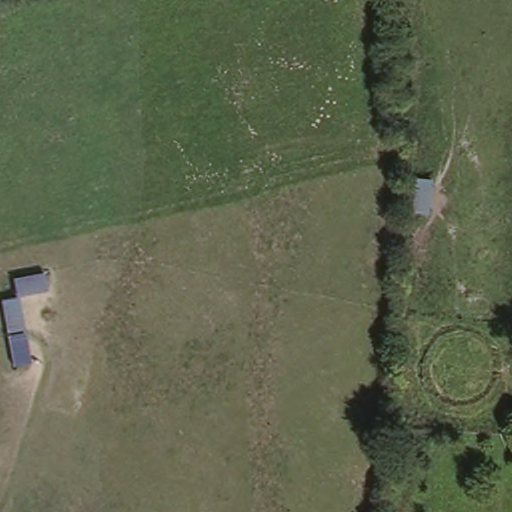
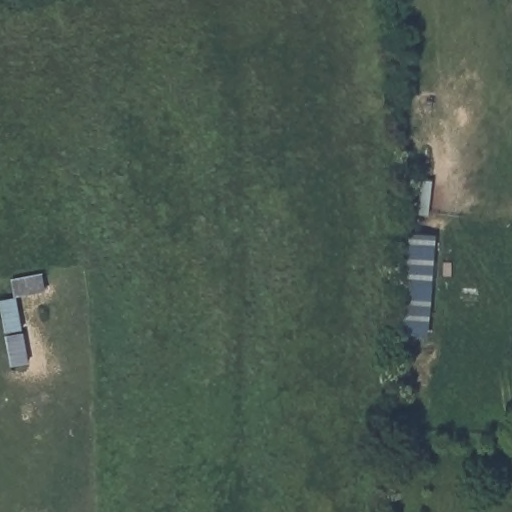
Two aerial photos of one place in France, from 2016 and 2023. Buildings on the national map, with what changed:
new [(405,334),(413,233),(438,235),(430,335),(405,334)]
unchanged [(4,334),(0,314),(0,304),(15,300),(12,280),(47,274),(50,295),(17,300),(25,333),(4,334)]

